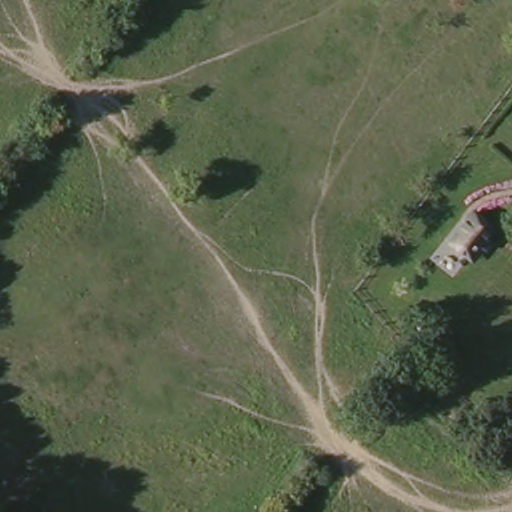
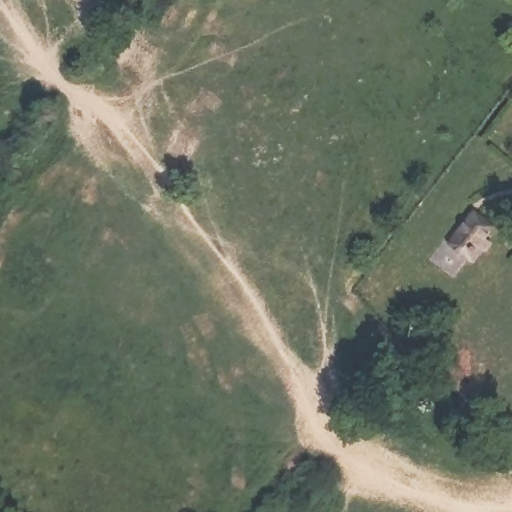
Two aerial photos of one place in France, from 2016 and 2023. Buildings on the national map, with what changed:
unchanged [(470,212),(493,231),(487,240),(491,242),(481,254),(479,252),(469,265),(445,242),(470,212)]

